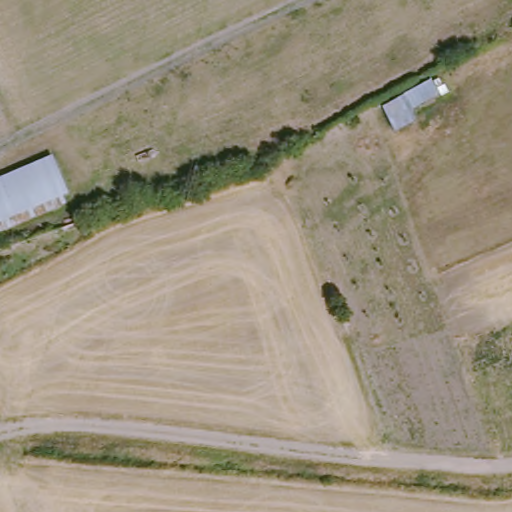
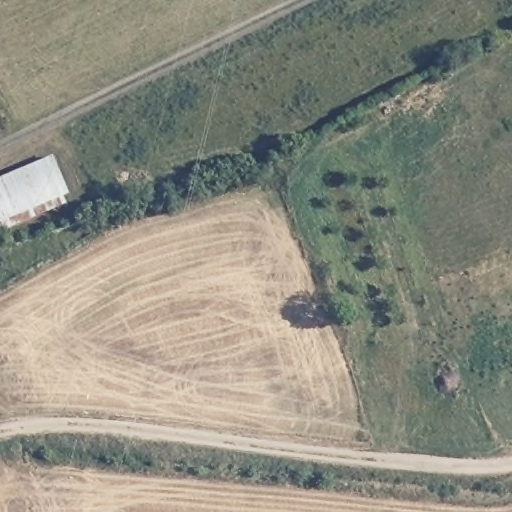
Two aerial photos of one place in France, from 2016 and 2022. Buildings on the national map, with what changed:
unchanged [(5,226),(0,228),(0,187),(60,164),(74,199),(62,204),(65,211),(7,233),(5,226)]

